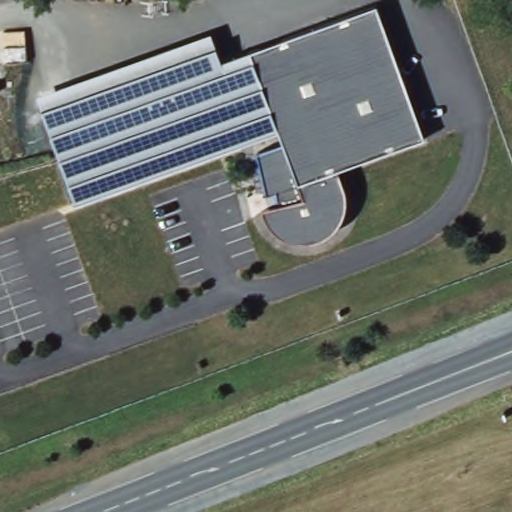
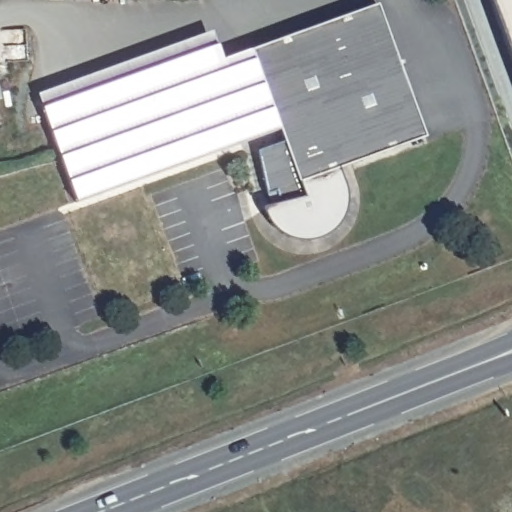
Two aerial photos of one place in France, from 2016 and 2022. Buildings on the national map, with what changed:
new [(512,0),(512,61),(490,0),(512,0)]
unchanged [(377,5),(424,137),(338,169),(344,189),(345,199),(343,212),(339,220),(331,230),(321,235),(312,238),(301,240),(287,237),(276,231),(269,223),(263,209),(270,206),(256,153),(280,144),(275,131),(248,52),(377,5)]
unchanged [(275,131),(77,202),(37,94),(212,29),(222,58),(248,52),(275,131)]

